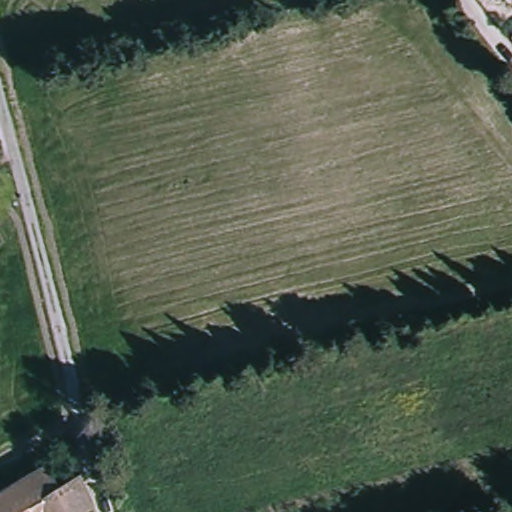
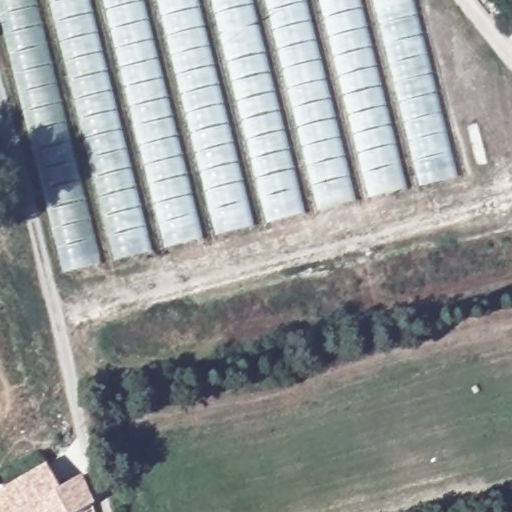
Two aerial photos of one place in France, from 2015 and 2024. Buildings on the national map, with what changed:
new [(0,9),(0,0),(411,0),(455,180),(67,274),(0,9)]
unchanged [(512,31),(512,38),(509,33),(512,31)]
unchanged [(82,512),(0,512),(0,494),(47,467),(59,488),(77,479),(92,507),(82,512)]

